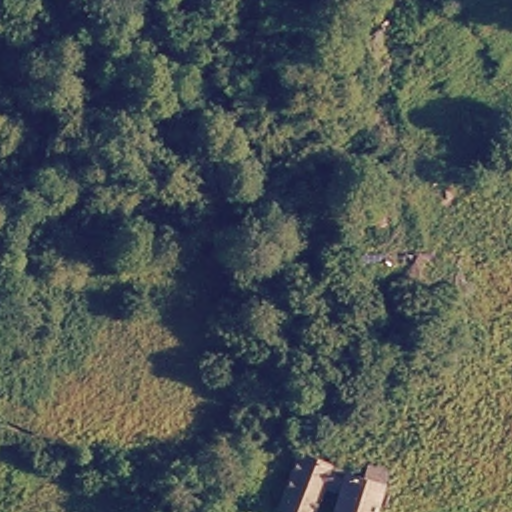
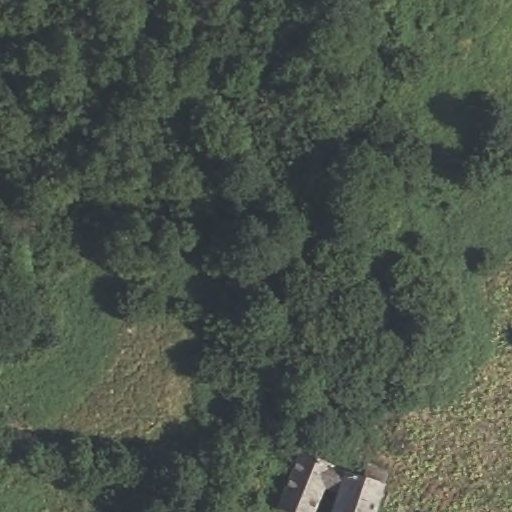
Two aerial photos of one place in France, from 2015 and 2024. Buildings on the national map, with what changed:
unchanged [(300,447),(335,460),(318,512),(296,512),(278,505),(282,500),(300,447)]
unchanged [(345,487),(338,484),(342,472),(376,485),(380,473),(393,478),(380,512),(336,512),(345,487)]

